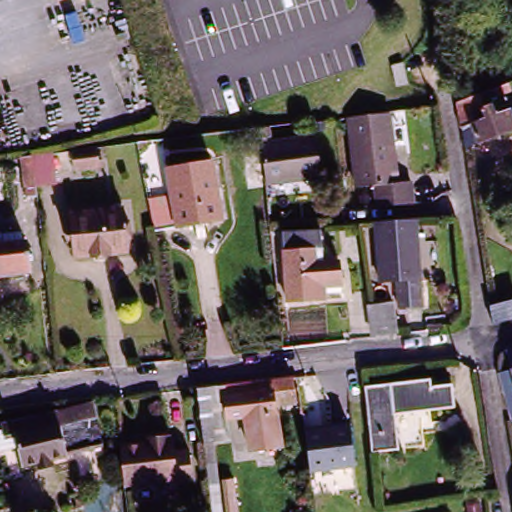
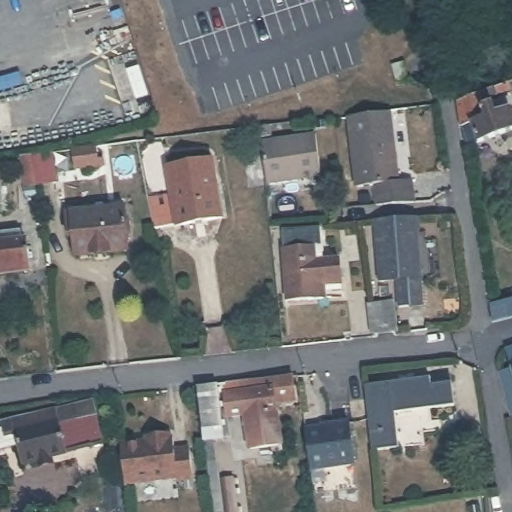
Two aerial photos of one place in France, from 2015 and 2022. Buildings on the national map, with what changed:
unchanged [(392,62),(403,60),(408,80),(397,83),(392,62)]
unchanged [(506,101),(494,105),(496,112),(506,110),(508,118),(512,117),(512,138),(477,147),(470,106),(503,92),(506,101)]
unchanged [(377,115),(390,112),(401,182),(412,182),(413,187),(415,200),(397,201),(378,202),(376,186),(360,189),(349,119),(377,115)]
unchanged [(92,126),(97,140),(80,145),(76,130),(92,126)]
unchanged [(273,126),(274,135),(265,136),(264,127),(273,126)]
unchanged [(318,134),(323,176),(268,183),(263,141),(318,134)]
unchanged [(27,182),(24,152),(32,150),(55,147),(60,177),(36,180),(27,182)]
unchanged [(101,150),(104,169),(77,172),(74,154),(101,150)]
unchanged [(173,193),(167,166),(217,157),(222,184),(229,215),(165,227),(160,227),(154,197),(173,193)]
unchanged [(122,216),(128,257),(84,263),(81,245),(74,246),(72,223),(122,216)]
unchanged [(421,217),(425,302),(398,303),(397,281),(381,282),(378,220),(421,217)]
unchanged [(278,227),(313,223),(317,253),(332,252),(335,277),(321,278),(322,290),(286,295),(278,227)]
unchanged [(29,236),(31,250),(35,278),(0,284),(0,239),(29,236)]
unchanged [(512,307),(489,314),(486,295),(512,288),(512,307)]
unchanged [(376,306),(397,302),(403,336),(382,338),(376,306)]
unchanged [(512,355),(512,372),(508,357),(512,355)]
unchanged [(512,374),(512,403),(505,376),(512,374)]
unchanged [(206,391),(307,376),(309,400),(282,406),(290,448),(257,454),(252,422),(243,423),(242,418),(235,419),(232,398),(225,400),(227,446),(222,446),(227,483),(219,484),(214,447),(210,447),(206,391)]
unchanged [(430,378),(431,384),(446,382),(448,405),(448,410),(395,415),(398,448),(371,451),(366,383),(382,382),(430,378)]
unchanged [(22,410),(24,416),(79,400),(93,396),(104,432),(90,437),(76,441),(74,447),(60,451),(62,460),(47,463),(45,456),(31,460),(24,434),(20,432),(16,433),(10,413),(22,410)]
unchanged [(323,416),(335,415),(351,413),(353,413),(358,458),(312,463),(307,421),(324,419),(323,416)]
unchanged [(151,441),(157,440),(174,438),(174,443),(177,443),(179,460),(194,458),(196,487),(181,487),(181,483),(130,487),(126,447),(151,446),(151,441)]
unchanged [(242,481),(246,512),(234,512),(231,482),(242,481)]
unchanged [(482,495),(484,512),(471,512),(468,497),(482,495)]

